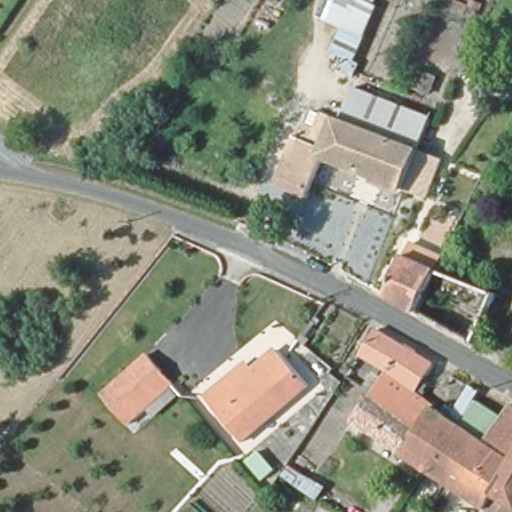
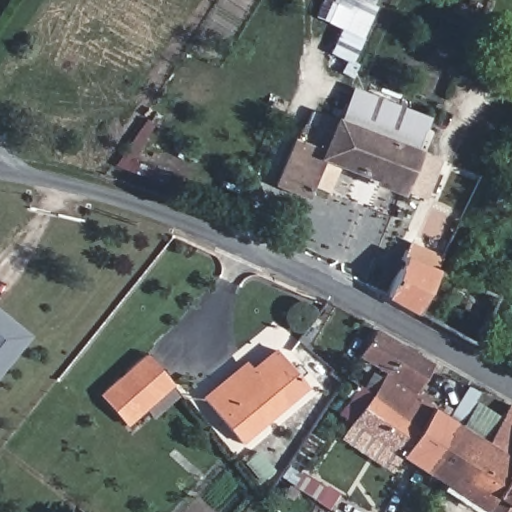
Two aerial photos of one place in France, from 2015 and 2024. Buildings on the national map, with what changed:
unchanged [(324,0),(377,0),(376,2),(378,6),(353,65),(331,53),(341,27),(319,17),(324,0)]
unchanged [(442,161),(427,200),(403,192),(337,166),(329,186),(315,181),(309,197),(275,186),(293,137),(299,137),(304,124),(314,127),(320,114),(332,119),(334,117),(338,119),(352,86),(429,116),(419,150),(442,161)]
unchanged [(436,269),(418,312),(386,297),(408,244),(440,259),(436,269)]
new [(0,375),(0,308),(32,335),(0,375)]
unchanged [(509,413),(512,415),(512,467),(511,470),(467,443),(433,487),(415,476),(342,428),(361,405),(372,389),(365,382),(370,375),(356,365),(371,340),(425,369),(411,395),(459,422),(492,442),(509,413)]
unchanged [(309,392),(235,450),(199,402),(214,390),(243,368),(250,377),(279,355),(309,392)]
unchanged [(144,357),(172,387),(125,427),(99,398),(144,357)]
unchanged [(467,443),(511,470),(512,467),(512,510),(511,512),(472,512),(433,487),(467,443)]

